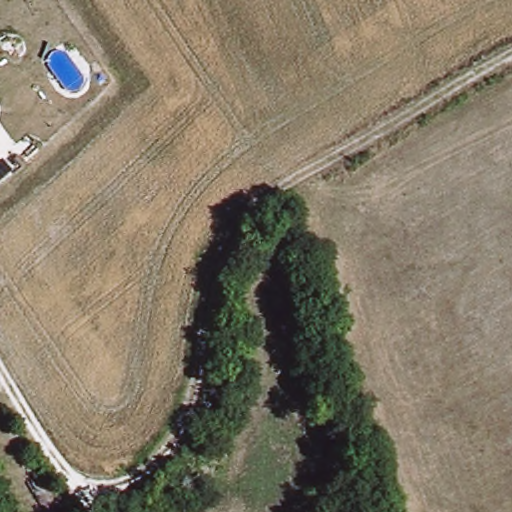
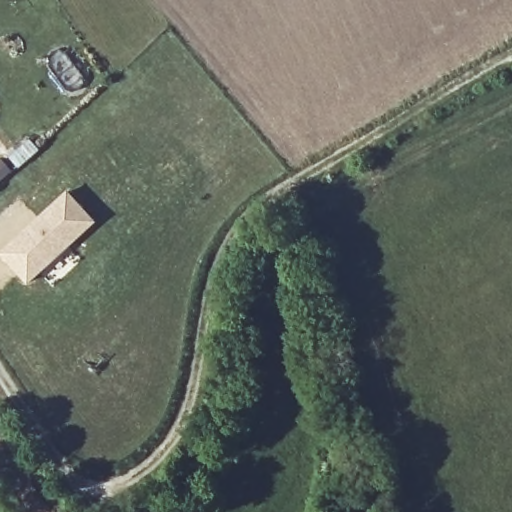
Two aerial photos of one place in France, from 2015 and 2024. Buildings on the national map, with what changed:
new [(0,254),(0,253),(67,192),(96,223),(26,285),(0,254)]

